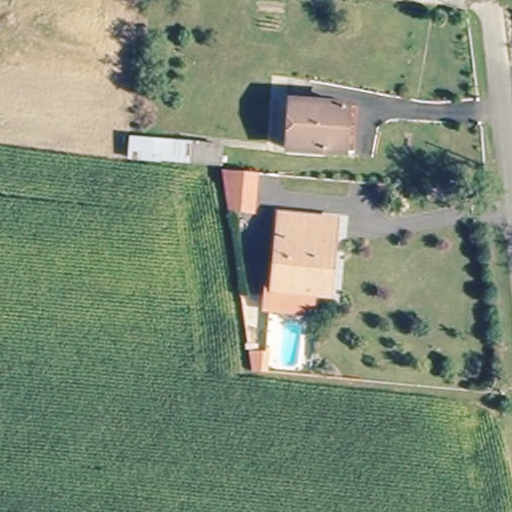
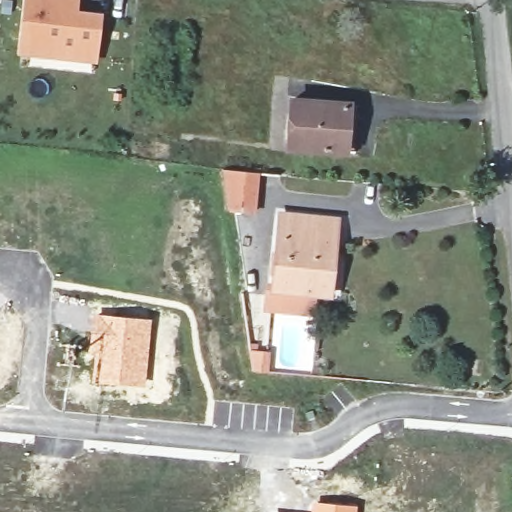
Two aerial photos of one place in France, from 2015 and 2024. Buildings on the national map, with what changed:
new [(23,0),(79,0),(78,10),(103,13),(97,63),(16,54),(23,0)]
unchanged [(349,154),(290,144),(294,98),(354,106),(349,154)]
unchanged [(129,162),(130,139),(225,147),(224,169),(129,162)]
unchanged [(260,175),(259,216),(231,215),(222,171),(260,175)]
unchanged [(270,308),(272,288),(279,289),(283,215),(337,221),(331,293),(319,291),(316,313),(270,308)]
new [(93,313),(152,318),(145,388),(94,382),(96,355),(89,354),(93,313)]
unchanged [(280,348),(278,367),(266,367),(262,347),(280,348)]
new [(311,501),(357,505),(357,512),(310,512),(311,501)]

